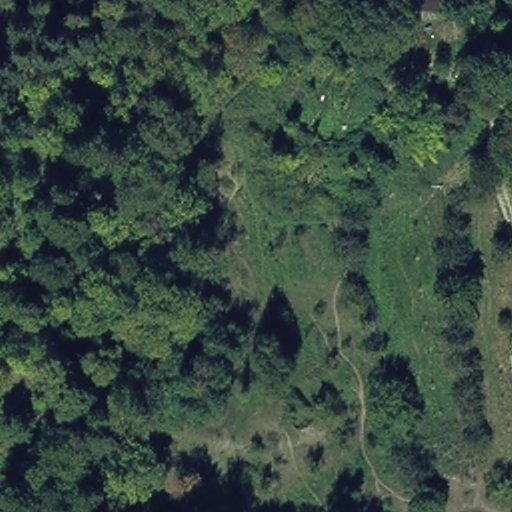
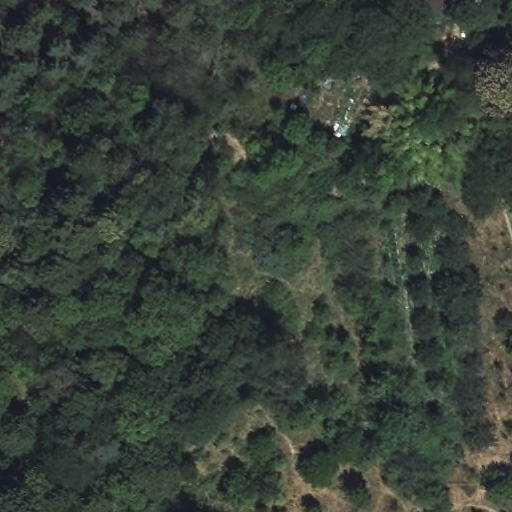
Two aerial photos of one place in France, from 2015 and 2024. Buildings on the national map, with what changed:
unchanged [(439,9),(402,6),(403,0),(439,0),(439,9)]

